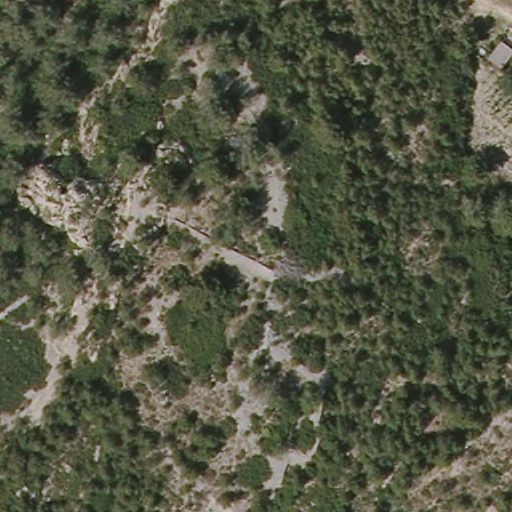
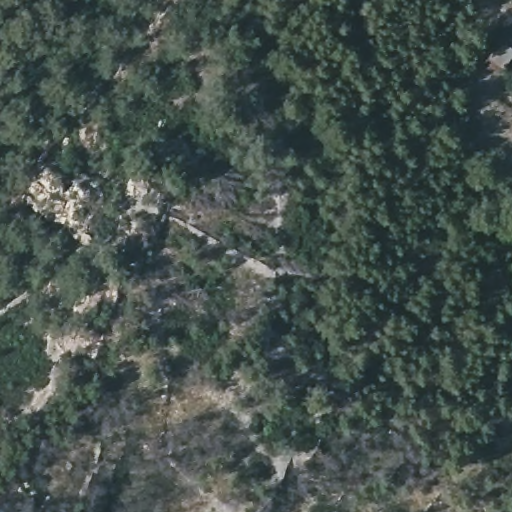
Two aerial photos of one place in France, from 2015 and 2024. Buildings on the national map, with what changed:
unchanged [(485,22),(512,50),(512,54),(501,64),(472,37),(485,22)]

